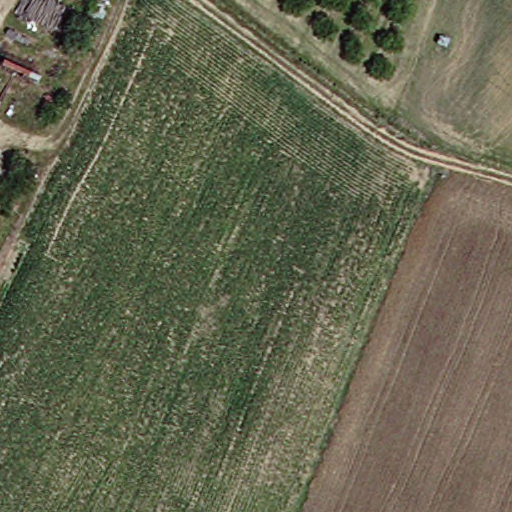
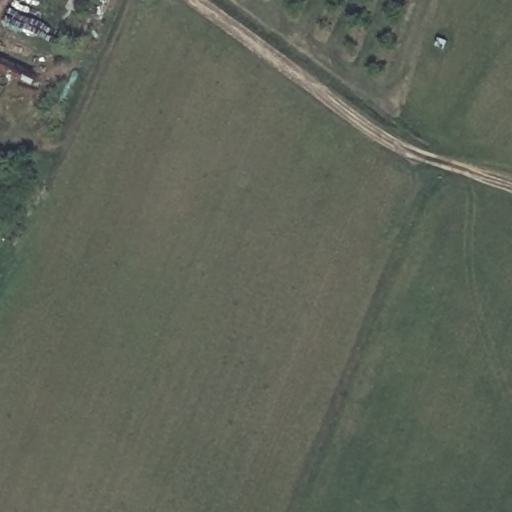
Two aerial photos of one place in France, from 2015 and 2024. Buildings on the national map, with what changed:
[]

